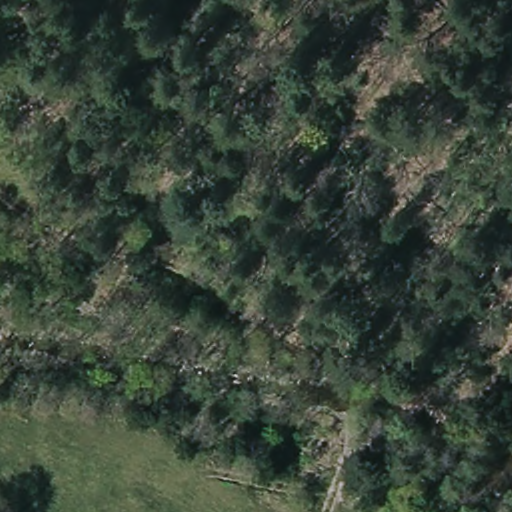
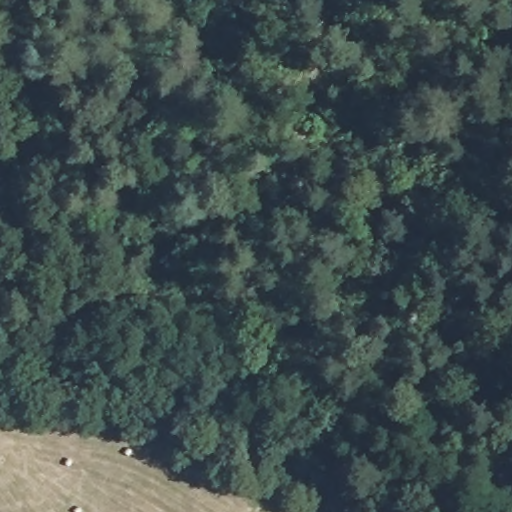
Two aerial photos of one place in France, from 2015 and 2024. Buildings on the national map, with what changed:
[]

